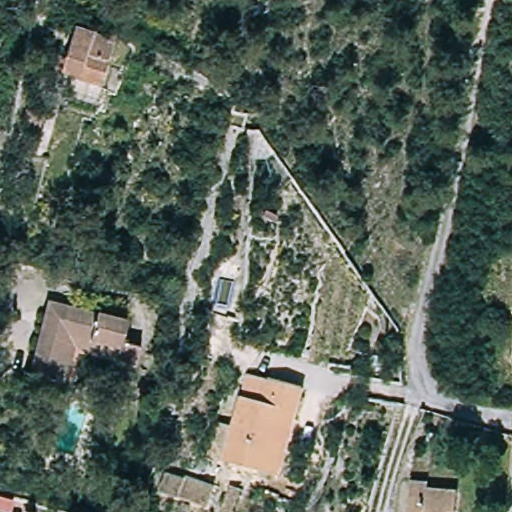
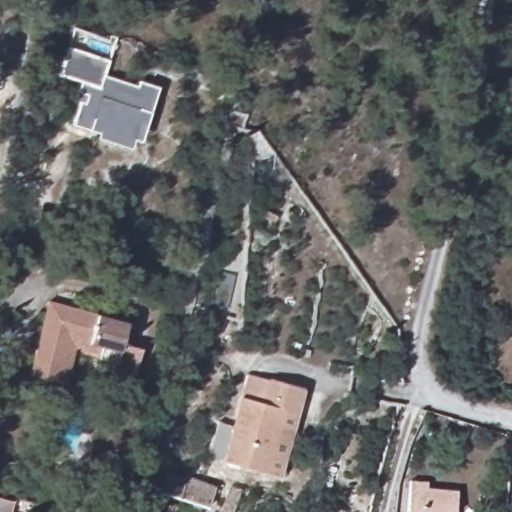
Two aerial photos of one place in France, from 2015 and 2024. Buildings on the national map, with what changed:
unchanged [(76,24),(116,34),(94,100),(71,92),(78,75),(61,70),(76,24)]
new [(136,86),(138,81),(158,87),(141,142),(133,140),(131,149),(96,139),(98,133),(71,126),(79,101),(83,102),(85,97),(94,100),(103,75),(136,86)]
unchanged [(14,132),(21,111),(43,119),(38,139),(14,132)]
unchanged [(104,356),(80,350),(70,382),(63,380),(32,371),(52,300),(133,322),(128,342),(146,347),(136,385),(115,380),(119,365),(103,360),(104,356)]
unchanged [(266,472),(221,459),(238,393),(260,399),(266,377),(302,387),(296,408),(279,475),(266,472)]
unchanged [(201,471),(191,493),(173,484),(183,462),(201,471)]
unchanged [(432,483),(432,490),(462,492),(459,512),(411,512),(414,482),(432,483)]
unchanged [(11,512),(0,512),(0,496),(14,501),(11,512)]

